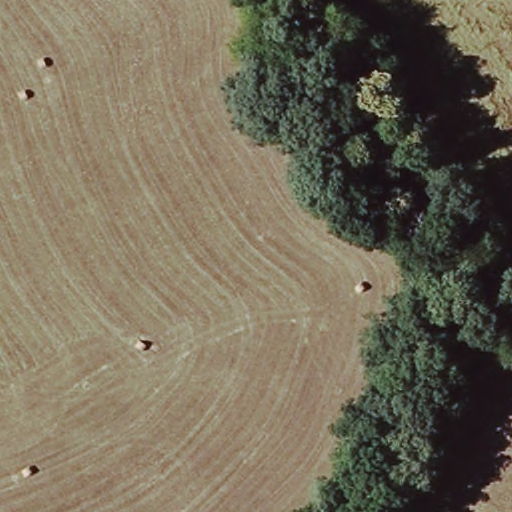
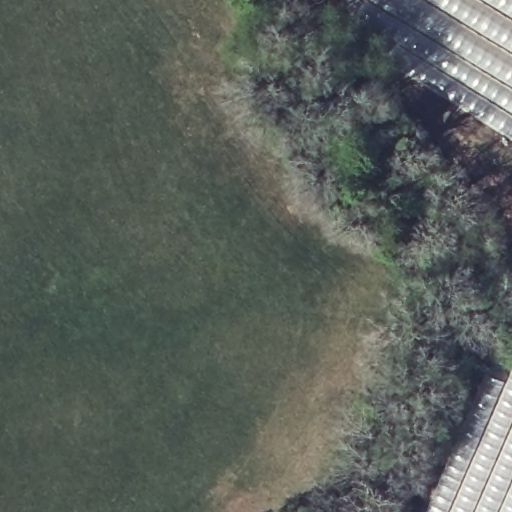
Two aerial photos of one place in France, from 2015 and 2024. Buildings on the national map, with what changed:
new [(479,95),(406,53),(364,20),(368,14),(370,16),(375,10),(361,0),(512,0),(512,115),(479,95)]
new [(406,53),(479,95),(512,115),(512,141),(405,73),(412,63),(404,56),(406,53)]
new [(512,370),(512,420),(472,512),(448,512),(497,395),(512,370)]
new [(497,395),(448,512),(425,512),(481,388),(497,395)]
new [(472,512),(512,420),(512,512),(472,512)]

